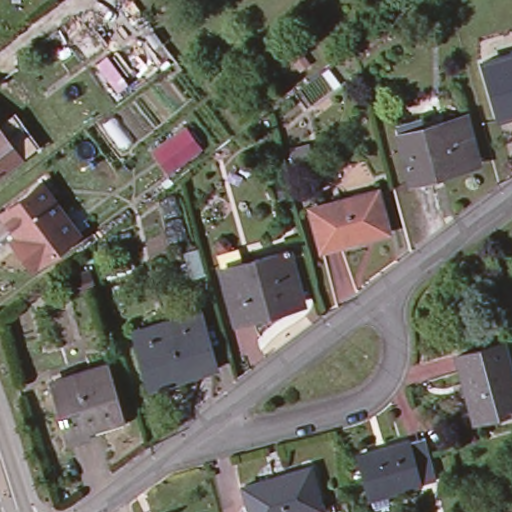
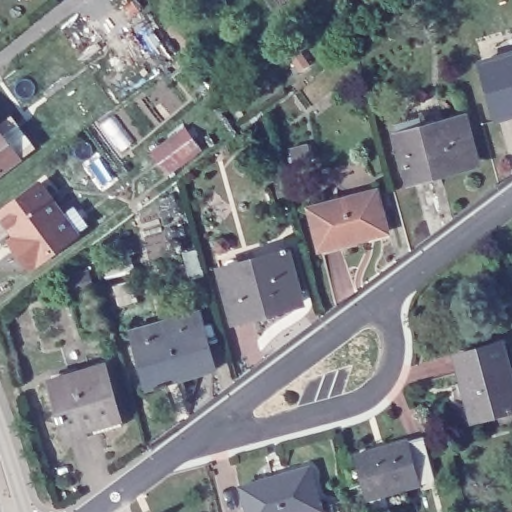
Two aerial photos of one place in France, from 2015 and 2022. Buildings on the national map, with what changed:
unchanged [(483,64),(512,55),(512,115),(497,119),(483,64)]
unchanged [(465,117),(477,161),(431,172),(432,176),(410,181),(399,139),(397,134),(418,129),(465,117)]
unchanged [(200,147),(167,172),(151,150),(184,126),(200,147)]
unchanged [(1,130),(23,160),(14,167),(0,177),(0,130),(1,130)]
unchanged [(18,236),(1,214),(41,185),(64,216),(76,208),(89,227),(32,268),(17,247),(12,241),(18,236)]
unchanged [(377,190),(387,231),(319,249),(310,207),(377,190)]
unchanged [(288,250),(302,302),(232,320),(219,269),(288,250)]
unchanged [(90,270),(95,285),(72,294),(67,278),(90,270)]
unchanged [(214,369),(148,387),(135,341),(132,330),(165,321),(168,332),(203,323),(214,369)]
unchanged [(512,381),(512,408),(476,417),(469,391),(466,391),(456,355),(502,343),(512,381)]
unchanged [(106,363),(119,413),(99,418),(101,425),(86,430),(88,435),(67,440),(50,378),(106,363)]
unchanged [(422,437),(433,480),(418,483),(368,496),(356,456),(407,441),(422,437)]
unchanged [(320,510),(311,512),(250,512),(243,488),(308,468),(320,510)]

